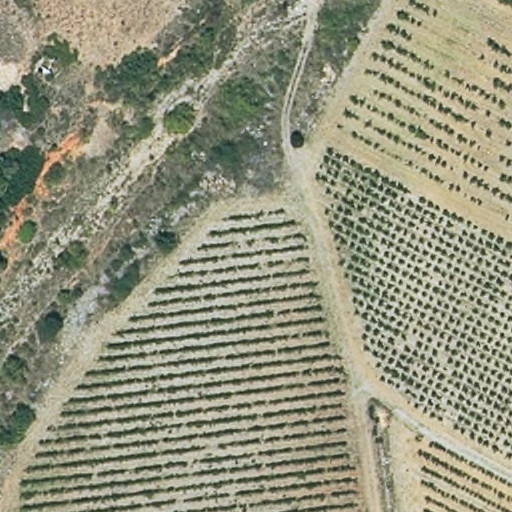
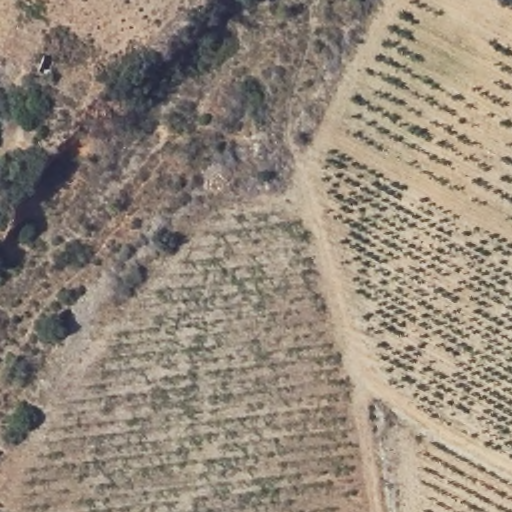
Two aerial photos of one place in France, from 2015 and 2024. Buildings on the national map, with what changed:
unchanged [(59,56),(51,73),(35,66),(46,45),(59,56)]

